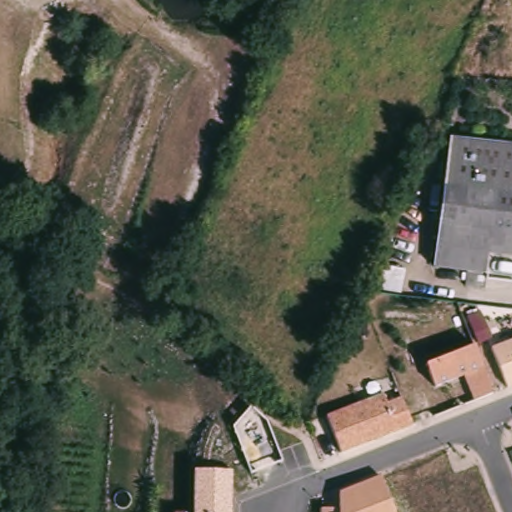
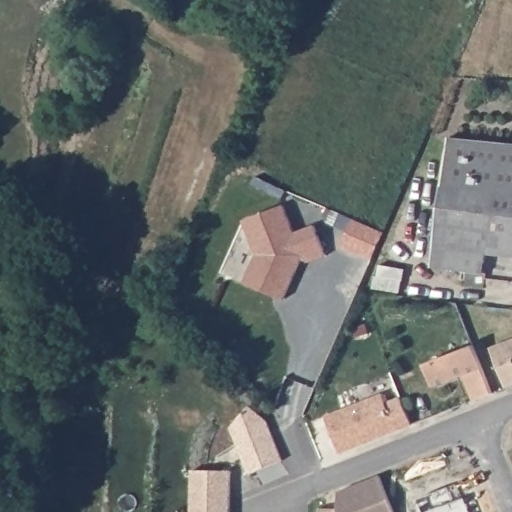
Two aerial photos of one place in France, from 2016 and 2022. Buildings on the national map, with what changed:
unchanged [(485,240),(482,257),(432,252),(444,140),(512,145),(512,243),(485,240)]
new [(284,205),(295,234),(314,226),(326,255),(309,262),(302,259),(284,300),(246,283),(258,255),(245,220),(284,205)]
unchanged [(473,400),(464,377),(434,389),(423,364),(477,342),(496,392),(473,400)]
unchanged [(512,342),(512,386),(508,387),(494,348),(512,342)]
unchanged [(389,403),(407,397),(416,427),(342,453),(328,413),(386,395),(389,403)]
unchanged [(252,474),(232,426),(251,405),(270,422),(284,461),(252,474)]
unchanged [(233,512),(194,512),(194,470),(234,470),(233,512)]
unchanged [(319,507),(340,500),(339,488),(380,473),(395,512),(319,512),(319,507)]

